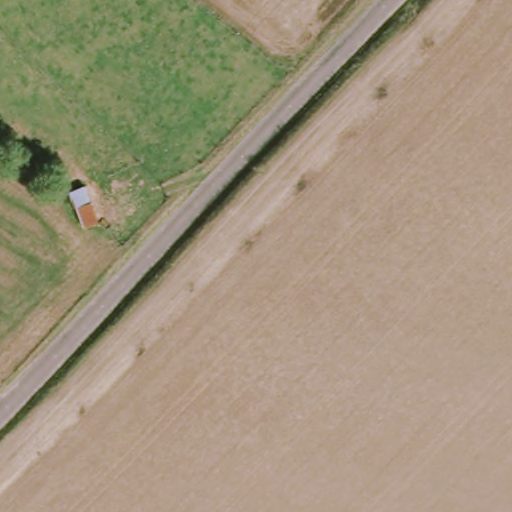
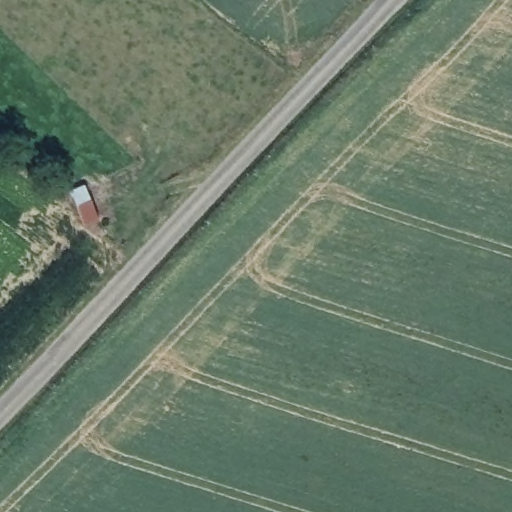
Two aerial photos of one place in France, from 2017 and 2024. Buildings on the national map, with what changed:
unchanged [(69,191),(86,185),(92,200),(99,219),(79,225),(69,231),(61,212),(74,205),(69,191)]

